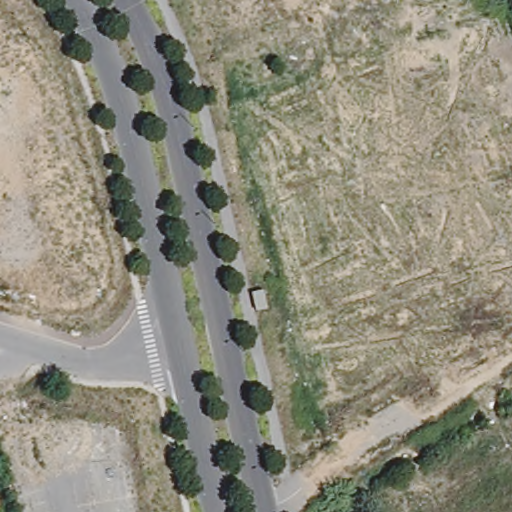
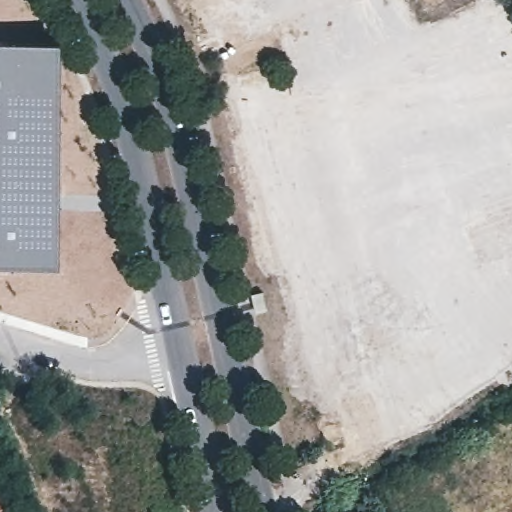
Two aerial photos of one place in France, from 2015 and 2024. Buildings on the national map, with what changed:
new [(59,263),(0,263),(0,40),(60,41),(59,263)]
unchanged [(0,512),(0,507),(2,512),(0,512)]

